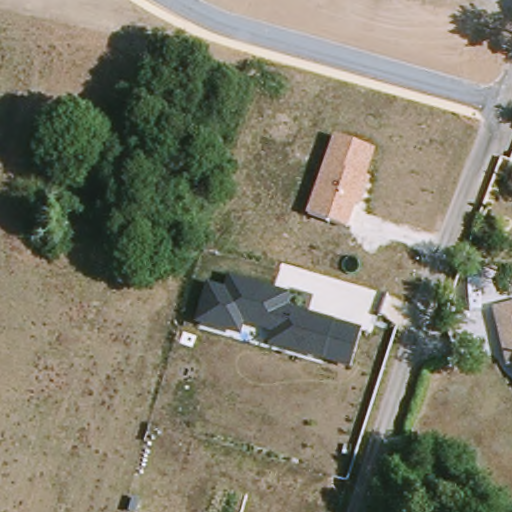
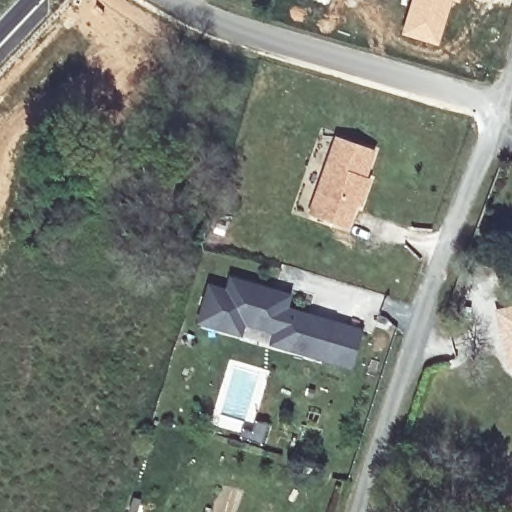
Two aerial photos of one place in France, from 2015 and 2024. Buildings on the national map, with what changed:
new [(459,3),(452,1),(439,45),(400,34),(410,0),(460,0),(459,3)]
unchanged [(378,151),(350,228),(309,213),(336,136),(378,151)]
unchanged [(207,283),(227,289),(230,277),(290,293),(286,307),(363,329),(352,368),(267,348),(271,334),(246,326),(243,336),(197,322),(207,283)]
unchanged [(512,309),(512,332),(505,311),(512,309)]

